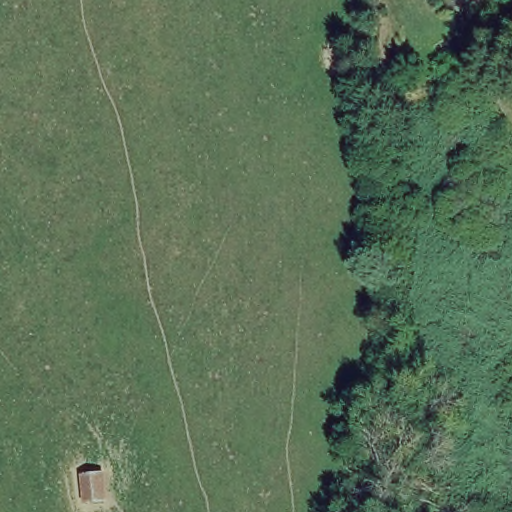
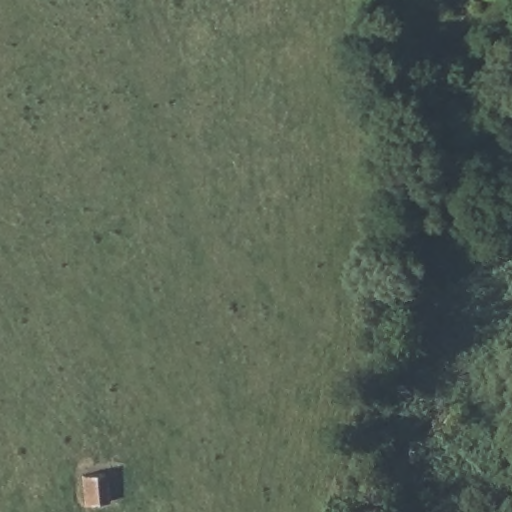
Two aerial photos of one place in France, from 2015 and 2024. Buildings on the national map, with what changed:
unchanged [(87,507),(84,479),(109,475),(112,505),(87,507)]

